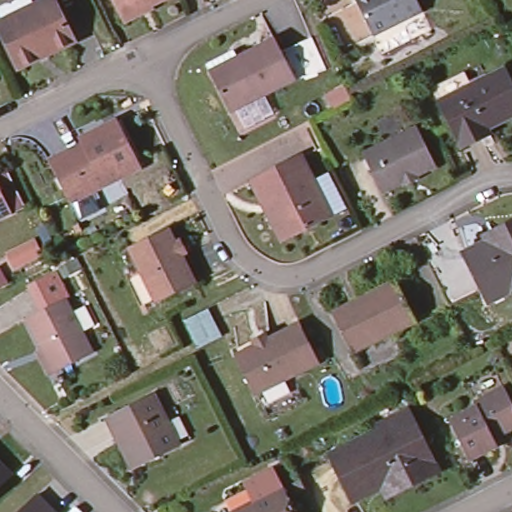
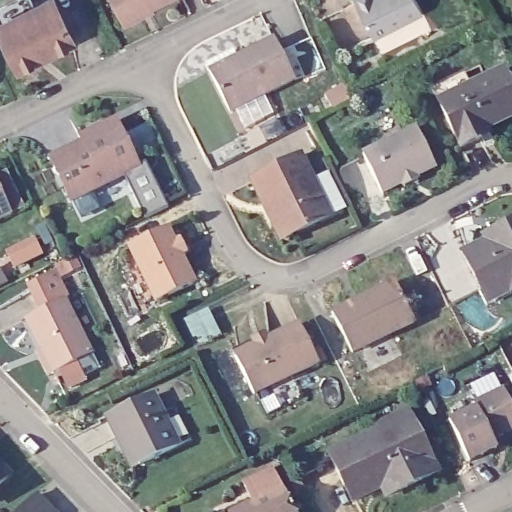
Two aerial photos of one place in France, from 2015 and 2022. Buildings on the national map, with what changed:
unchanged [(20,67),(0,26),(0,7),(16,0),(31,0),(34,7),(50,0),(53,0),(73,41),(20,67)]
unchanged [(126,27),(125,23),(113,0),(173,0),(153,10),(155,13),(126,27)]
unchanged [(422,10),(372,35),(355,0),(416,0),(422,10)]
unchanged [(275,54),(306,41),(321,72),(290,82),(289,81),(275,54)]
unchanged [(268,42),(275,54),(289,81),(225,112),(205,73),(268,42)]
unchanged [(482,136),(462,146),(439,101),(433,89),(464,72),(470,85),(503,69),(512,87),(512,113),(486,126),(489,133),(482,136)]
unchanged [(352,101),(333,111),(326,96),(345,87),(352,101)]
unchanged [(138,168),(70,200),(52,161),(85,144),(82,138),(94,132),(115,122),(138,168)]
unchanged [(403,185),(402,181),(382,190),(362,155),(377,148),(379,150),(388,145),(390,140),(398,136),(404,139),(417,132),(434,166),(415,175),(417,180),(403,185)]
unchanged [(301,155),(331,213),(282,238),(275,220),(277,219),(257,178),(301,155)]
unchanged [(0,217),(0,190),(10,212),(0,217)]
unchanged [(483,287),(466,250),(484,240),(483,235),(495,230),(512,221),(512,287),(509,288),(488,298),(483,287)]
unchanged [(135,272),(127,255),(135,251),(134,247),(172,229),(180,242),(185,239),(190,252),(186,255),(200,281),(162,301),(160,298),(144,306),(130,276),(135,272)]
unchanged [(392,279),(413,319),(352,351),(332,311),(392,279)]
unchanged [(37,351),(42,347),(23,318),(38,308),(58,294),(59,296),(90,346),(55,369),(50,373),(37,351)]
unchanged [(317,360),(252,393),(235,354),(297,323),(317,360)]
unchanged [(267,337),(235,354),(232,348),(264,332),(267,337)]
unchanged [(502,386),(512,406),(512,426),(492,436),(495,444),(468,456),(450,418),(475,404),(473,399),(502,386)]
unchanged [(112,450),(98,420),(150,398),(157,413),(171,407),(187,440),(173,446),(127,467),(121,470),(112,450)]
unchanged [(385,484),(356,497),(333,453),(377,430),(376,426),(410,409),(414,417),(440,470),(402,488),(391,495),(385,484)]
unchanged [(0,483),(0,465),(9,474),(0,483)]
unchanged [(283,486),(296,512),(229,512),(283,486)]
unchanged [(59,512),(22,512),(41,494),(59,512)]

